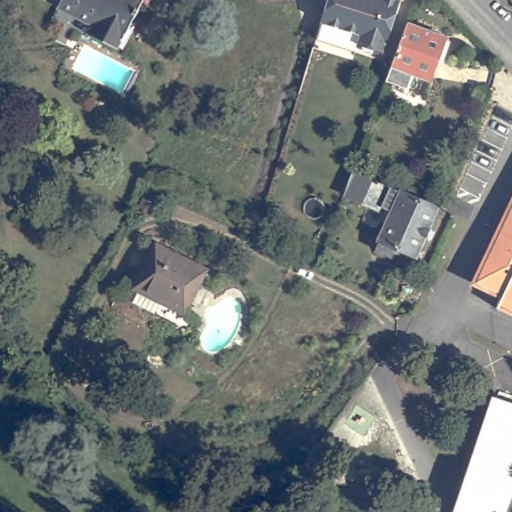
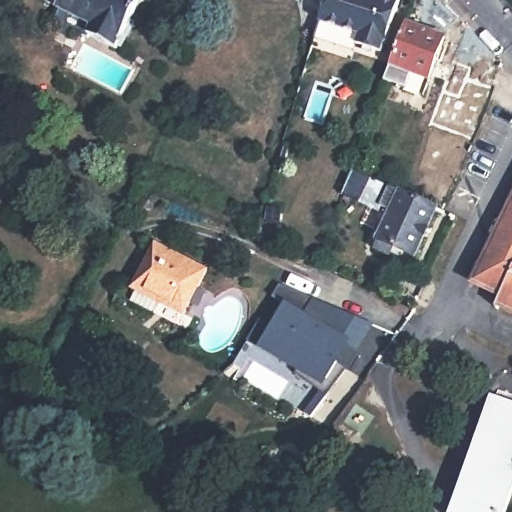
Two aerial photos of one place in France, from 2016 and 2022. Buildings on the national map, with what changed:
unchanged [(63,0),(144,0),(121,45),(94,30),(93,34),(56,14),(63,0)]
unchanged [(387,42),(385,42),(382,51),(357,44),(360,35),(320,22),(327,0),(400,0),(387,42)]
unchanged [(398,71),(410,37),(418,18),(455,32),(439,75),(433,73),(427,89),(396,76),(398,71)]
unchanged [(357,171),(395,187),(386,208),(385,210),(348,194),(357,171)]
unchanged [(381,250),(385,241),(383,240),(396,212),(386,208),(395,187),(405,192),(442,209),(420,256),(399,246),(395,255),(381,250)]
unchanged [(503,292),(476,279),(512,206),(512,308),(498,301),(503,292)]
unchanged [(161,245),(210,271),(186,315),(138,288),(161,245)]
new [(351,370),(344,368),(325,396),(295,374),(296,370),(248,340),(280,285),(375,325),(351,370)]
unchanged [(512,403),(512,496),(507,512),(460,512),(497,398),(512,403)]
unchanged [(299,474),(343,500),(339,507),(295,481),(299,474)]

